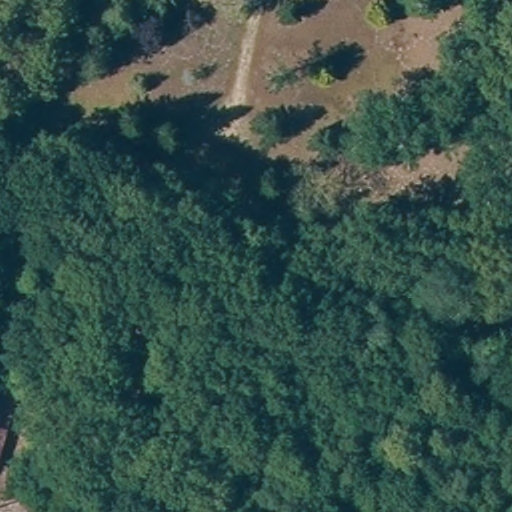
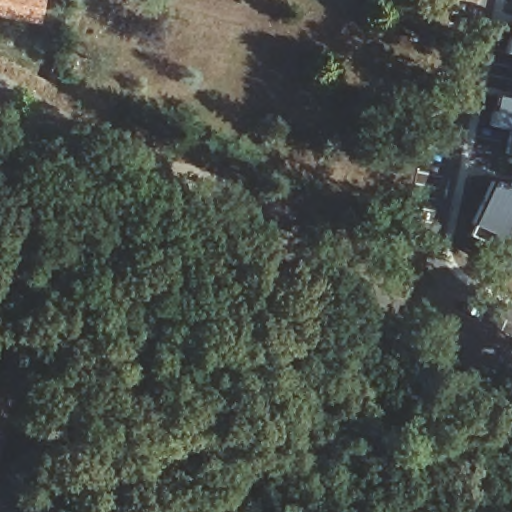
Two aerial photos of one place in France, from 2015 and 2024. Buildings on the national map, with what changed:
new [(41,26),(0,18),(0,0),(45,0),(41,26)]
new [(509,23),(512,24),(512,55),(503,52),(509,23)]
new [(512,114),(512,157),(504,155),(508,112),(512,114)]
new [(512,189),(512,269),(477,248),(479,245),(464,235),(491,180),(512,189)]
unchanged [(0,454),(0,394),(16,398),(0,454)]

